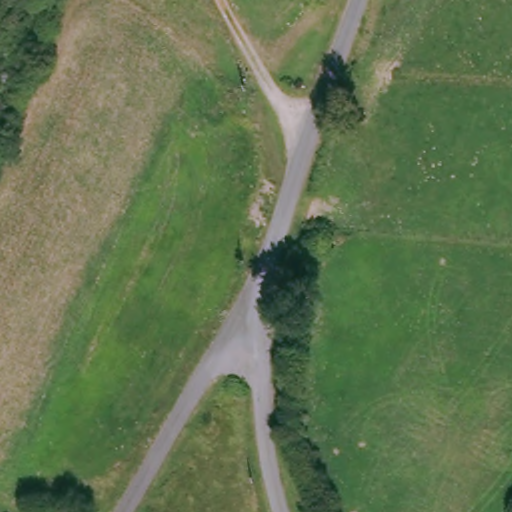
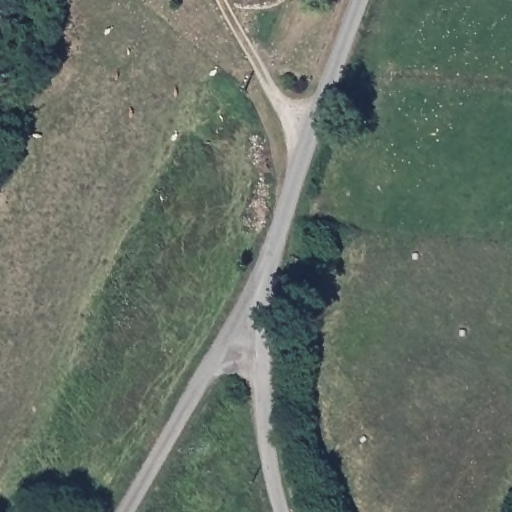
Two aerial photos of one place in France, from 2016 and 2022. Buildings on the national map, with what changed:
[]

